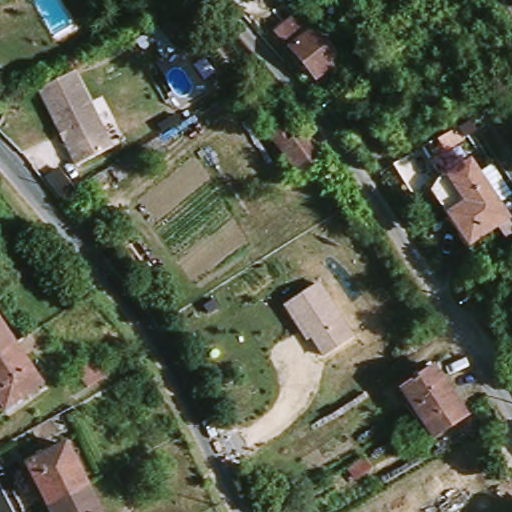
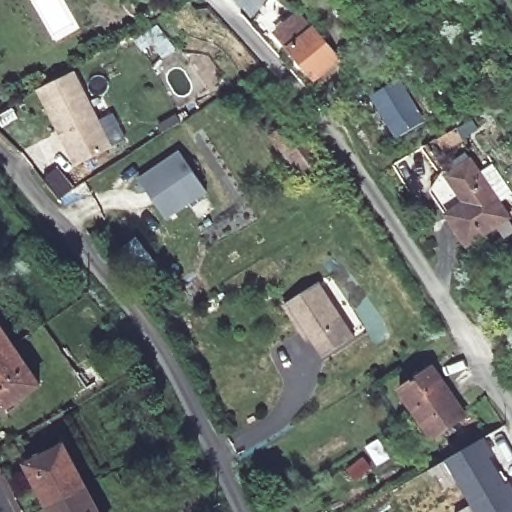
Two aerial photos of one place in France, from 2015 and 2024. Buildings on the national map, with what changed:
unchanged [(265,18),(280,8),(286,17),(272,28),(265,18)]
unchanged [(315,84),(275,37),(291,23),(305,39),(312,33),(338,64),(315,84)]
unchanged [(111,144),(76,164),(34,91),(69,70),(111,144)]
unchanged [(297,179),(270,141),(283,131),(292,143),(304,134),(323,160),(297,179)]
new [(177,150),(207,191),(169,218),(139,177),(177,150)]
unchanged [(467,244),(447,214),(431,190),(443,169),(447,176),(470,160),(479,173),(491,164),(511,194),(498,203),(508,217),(467,244)]
new [(140,240),(159,267),(142,278),(124,252),(140,240)]
unchanged [(358,337),(325,357),(312,336),(304,340),(285,305),(320,281),(358,337)]
unchanged [(12,345),(0,354),(0,327),(12,345)]
unchanged [(12,345),(40,385),(5,409),(0,403),(0,354),(12,345)]
unchanged [(399,390),(433,367),(465,415),(431,437),(399,390)]
new [(482,438),(491,453),(487,455),(504,485),(473,503),(447,459),(482,438)]
unchanged [(25,464),(65,445),(86,488),(48,507),(25,464)]
new [(508,482),(512,488),(512,512),(479,512),(473,503),(504,485),(508,482)]
unchanged [(99,512),(50,512),(48,507),(86,488),(99,512)]

